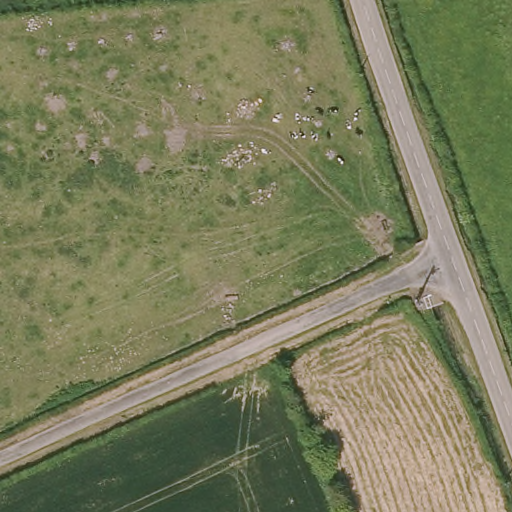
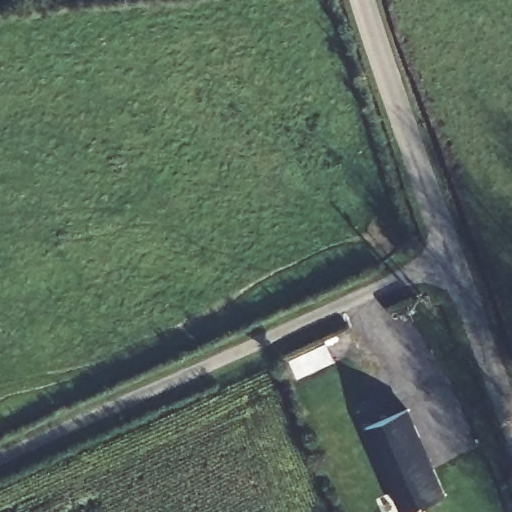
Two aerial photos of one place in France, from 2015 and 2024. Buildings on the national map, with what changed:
new [(448,495),(409,512),(402,512),(366,428),(411,409),(448,495)]

